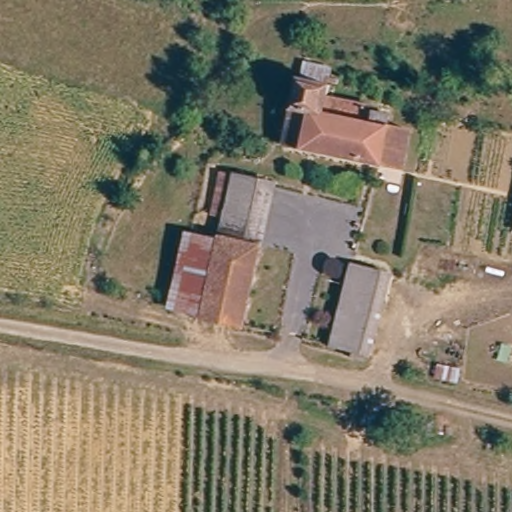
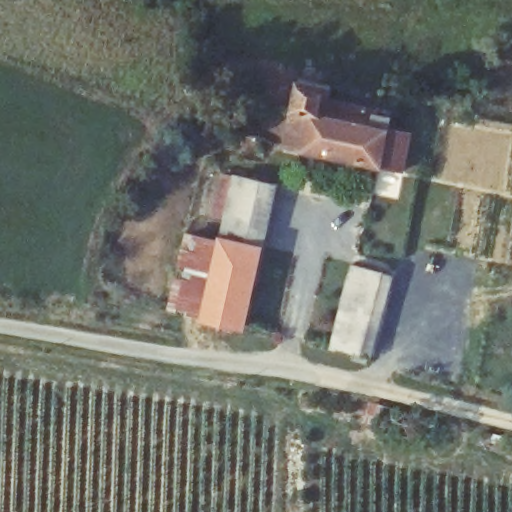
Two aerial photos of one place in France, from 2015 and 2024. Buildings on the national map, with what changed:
unchanged [(407,172),(382,167),(284,147),(286,139),(301,76),(339,84),(331,116),(378,125),(381,113),(393,116),(391,127),(390,131),(414,136),(407,172)]
unchanged [(225,219),(214,217),(225,169),(274,181),(264,228),(225,219)]
unchanged [(200,317),(170,309),(190,218),(223,226),(200,317)]
unchanged [(240,326),(200,317),(223,226),(225,219),(264,228),(240,326)]
unchanged [(330,350),(349,260),(391,269),(370,359),(330,350)]

